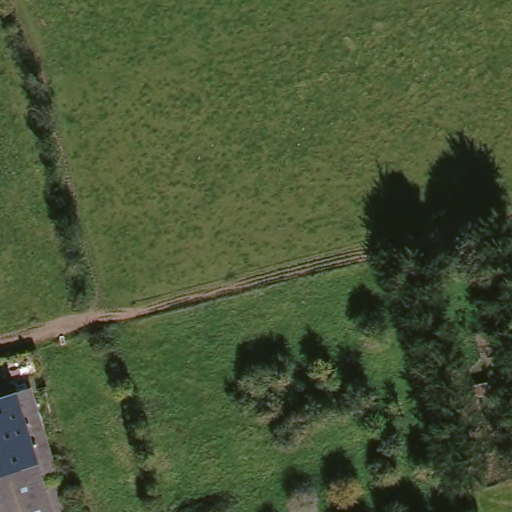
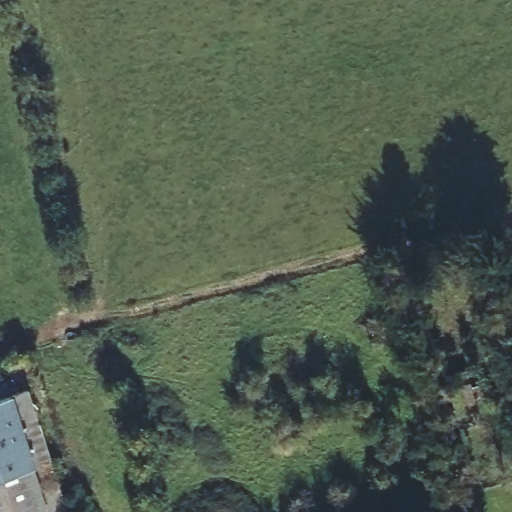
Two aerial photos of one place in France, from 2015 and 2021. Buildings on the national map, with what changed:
unchanged [(469,372),(484,422),(466,428),(450,378),(469,372)]
unchanged [(40,388),(61,461),(0,478),(0,400),(40,388)]
unchanged [(75,510),(65,512),(0,512),(0,478),(61,461),(75,510)]

